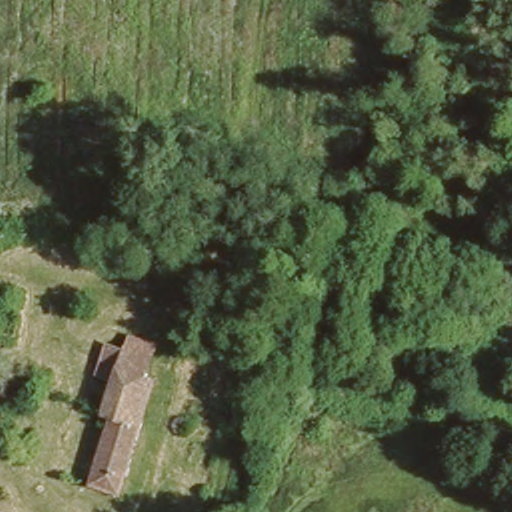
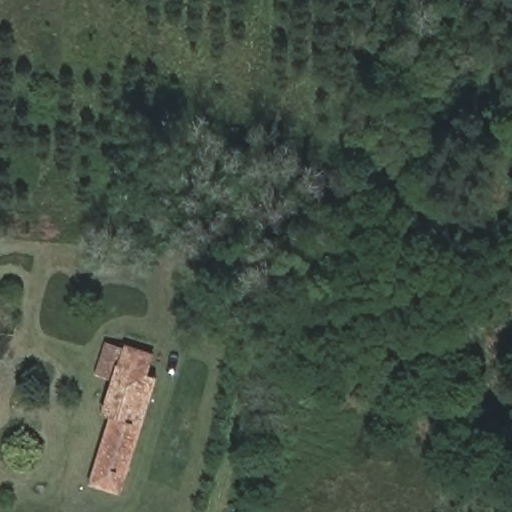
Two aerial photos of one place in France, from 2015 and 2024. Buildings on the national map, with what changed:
unchanged [(87,478),(110,406),(101,403),(121,343),(150,353),(144,370),(155,373),(140,417),(117,487),(87,478)]
unchanged [(44,371),(39,385),(24,379),(30,365),(44,371)]

